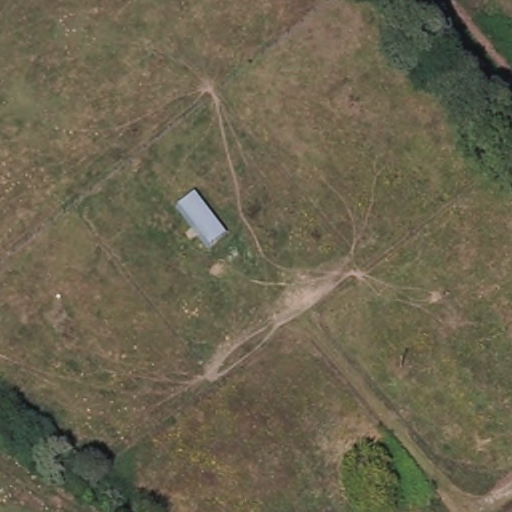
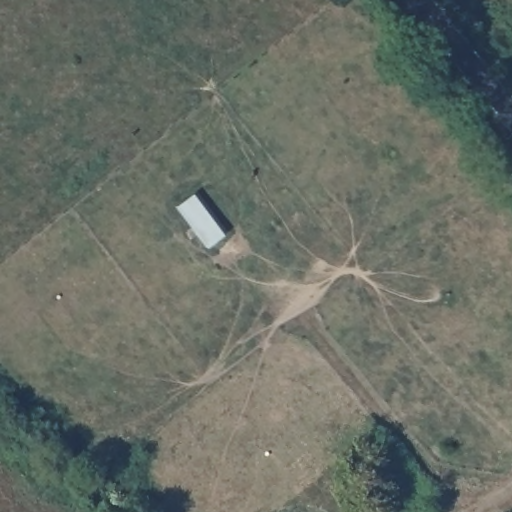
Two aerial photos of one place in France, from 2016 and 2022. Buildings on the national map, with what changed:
unchanged [(175,206),(194,192),(225,234),(206,249),(175,206)]

